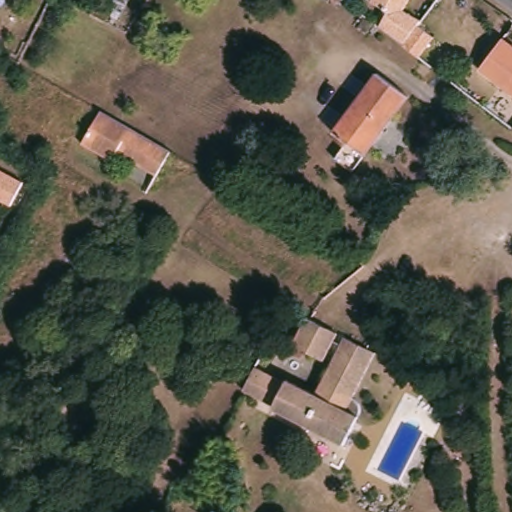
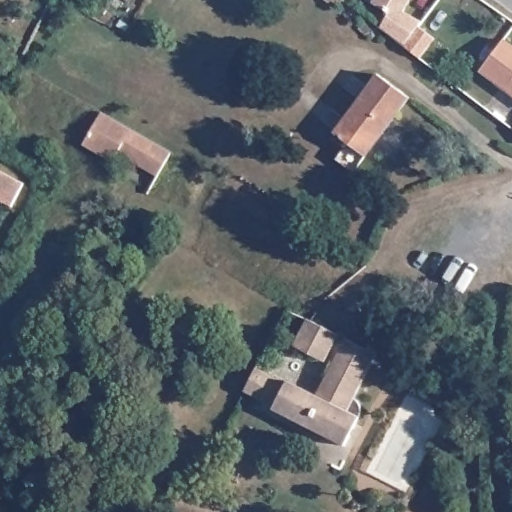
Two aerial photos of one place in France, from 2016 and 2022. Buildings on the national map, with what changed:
unchanged [(420,58),(405,46),(404,46),(385,32),(380,28),(389,12),(372,0),(409,0),(404,9),(422,20),(418,26),(434,37),(420,58)]
unchanged [(503,33),(512,40),(512,88),(480,64),(503,33)]
unchanged [(377,73),(409,96),(353,170),(335,157),(345,143),(332,133),(377,73)]
unchanged [(102,152),(85,143),(103,112),(170,150),(155,174),(115,151),(112,157),(102,152)]
unchanged [(29,181),(18,204),(0,196),(0,168),(29,181)]
unchanged [(299,333),(306,320),(338,334),(324,362),(299,351),(293,348),(299,333)]
unchanged [(377,352),(358,394),(369,400),(350,443),(280,410),(281,408),(248,392),(253,383),(258,371),(286,384),(288,382),(317,395),(321,386),(337,352),(344,337),(377,352)]
unchanged [(472,441),(463,441),(463,431),(472,431),(472,441)]

